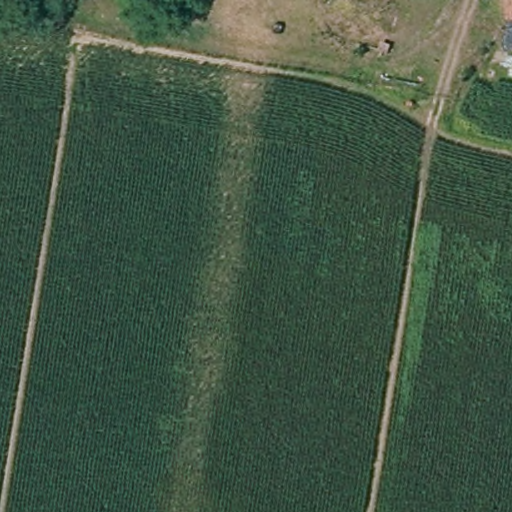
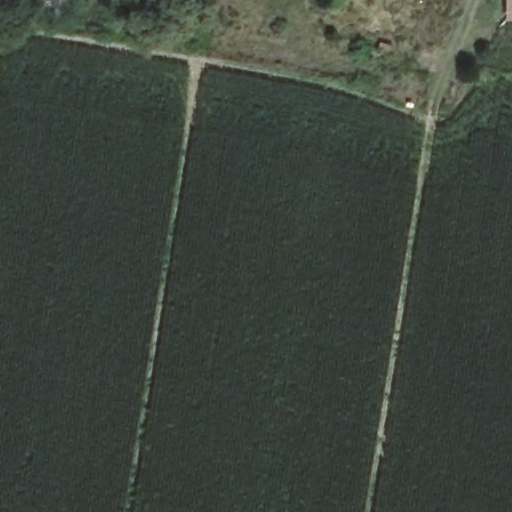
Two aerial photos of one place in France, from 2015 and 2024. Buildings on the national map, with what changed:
unchanged [(503,16),(505,0),(512,0),(512,18),(503,16)]

